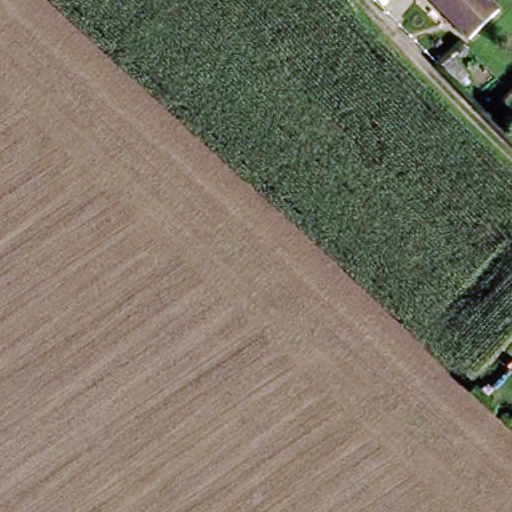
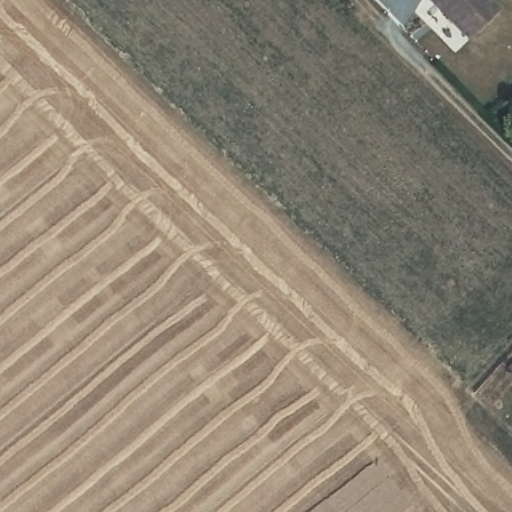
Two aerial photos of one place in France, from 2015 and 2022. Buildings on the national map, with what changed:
unchanged [(490,0),(501,11),(467,43),(425,0),(490,0)]

